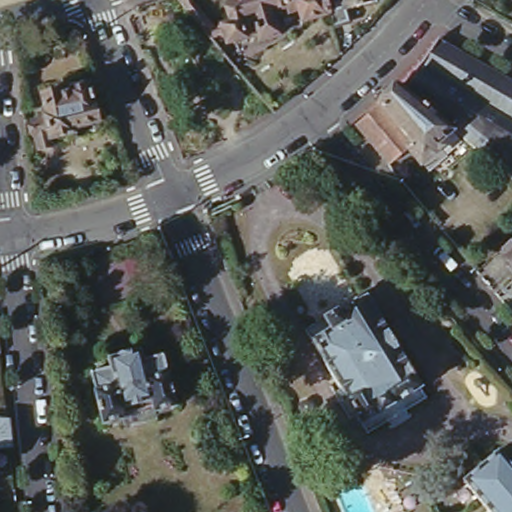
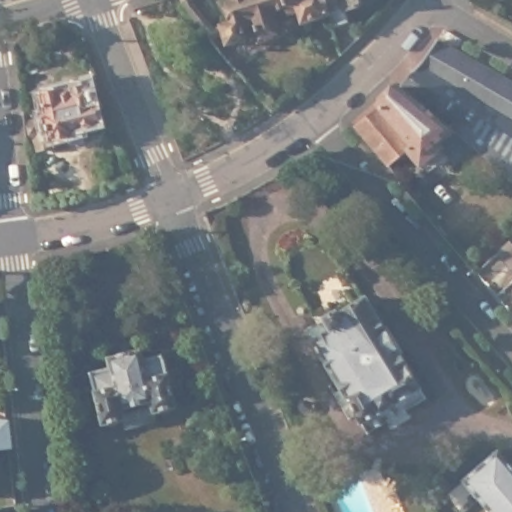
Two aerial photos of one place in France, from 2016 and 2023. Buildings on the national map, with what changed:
unchanged [(220,25),(233,21),(227,0),(324,0),(329,14),(301,23),(297,11),(287,14),(286,9),(279,10),(280,14),(272,16),(278,35),(258,41),(256,35),(226,44),(222,33),(210,39),(178,0),(195,0),(216,26),(220,25)]
unchanged [(344,10),(348,21),(333,26),(329,14),(324,0),(375,0),(376,1),(344,10)]
unchanged [(402,76),(426,51),(441,31),(464,46),(467,43),(512,70),(512,168),(457,121),(402,76)]
unchanged [(441,135),(445,139),(425,155),(411,139),(392,156),(361,119),(384,101),(382,97),(402,76),(457,121),(441,135)]
unchanged [(88,79),(98,118),(71,126),(71,129),(49,134),(52,141),(37,145),(31,116),(39,114),(38,109),(44,108),(40,91),(88,79)]
unchanged [(512,232),(512,254),(501,242),(512,232)]
unchanged [(360,429),(354,420),(348,424),(333,398),(338,394),(310,347),(304,336),(322,325),(321,324),(335,316),(336,319),(364,302),(420,393),(426,403),(366,439),(360,429)]
unchanged [(115,427),(113,419),(92,425),(79,373),(99,369),(96,358),(129,350),(132,361),(151,356),(165,407),(144,412),(146,419),(115,427)]
unchanged [(221,416),(235,450),(224,455),(213,442),(204,423),(221,416)]
unchanged [(0,417),(3,444),(0,444),(0,417)]
unchanged [(512,464),(512,512),(488,512),(459,478),(496,446),(512,464)]

